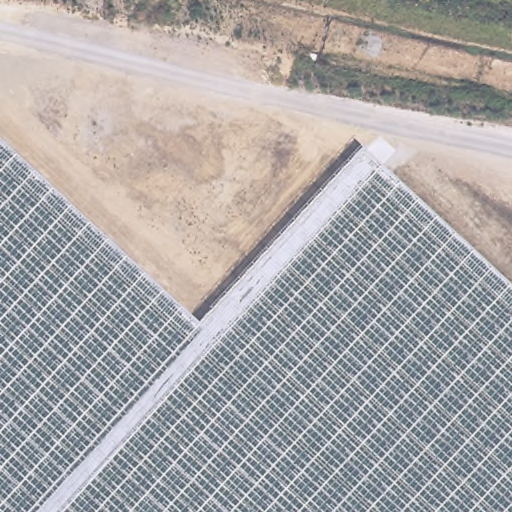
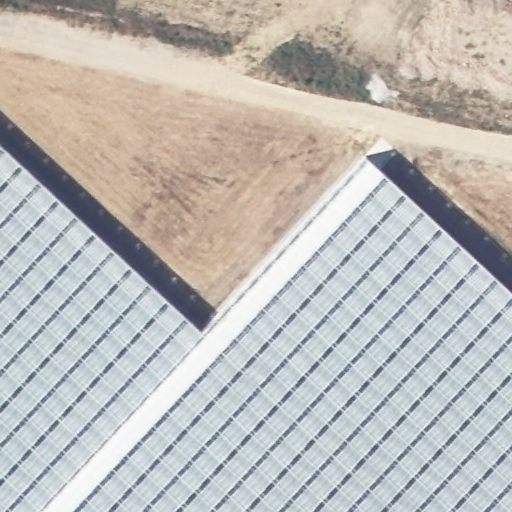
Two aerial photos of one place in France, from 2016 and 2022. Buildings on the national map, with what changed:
unchanged [(0,144),(199,330),(362,154),(512,293),(512,512),(0,512),(0,144)]

